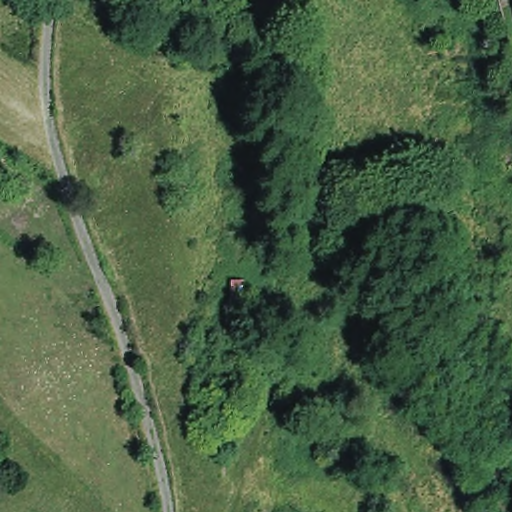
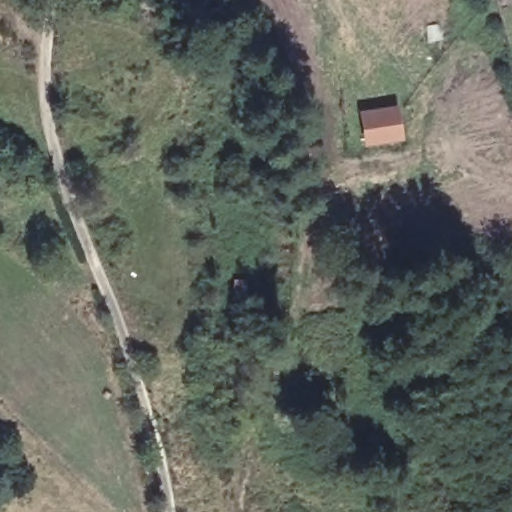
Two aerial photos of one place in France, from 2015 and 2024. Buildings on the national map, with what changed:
new [(364,147),(362,114),(397,110),(400,143),(364,147)]
unchanged [(334,175),(331,150),(364,147),(400,143),(402,167),(334,175)]
unchanged [(246,277),(245,298),(232,296),(234,275),(246,277)]
demolished [(150,315),(152,333),(139,335),(137,317),(150,315)]

